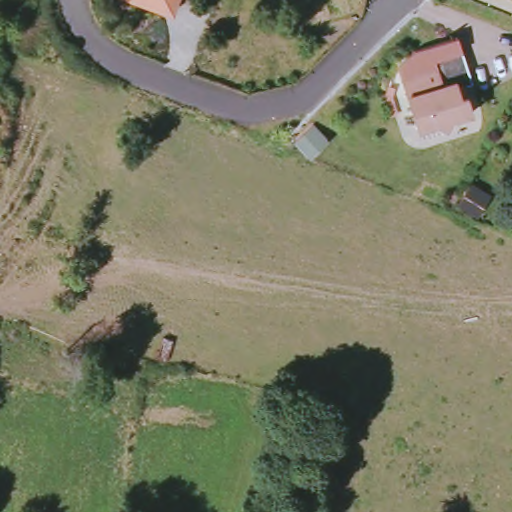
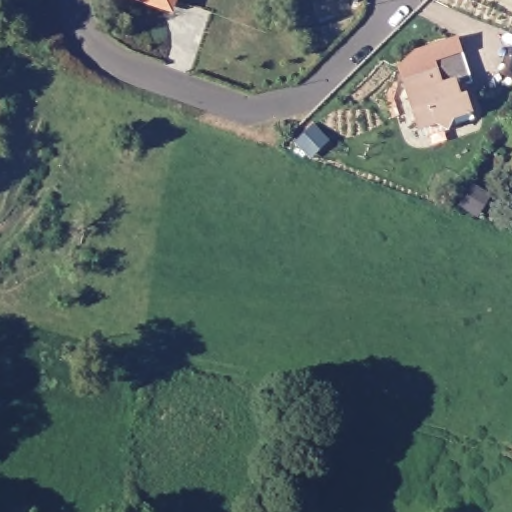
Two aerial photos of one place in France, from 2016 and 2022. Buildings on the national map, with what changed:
unchanged [(172,5),(158,0),(174,0),(172,5)]
unchanged [(457,84),(460,93),(466,92),(471,108),(452,114),(446,126),(435,120),(417,126),(400,76),(395,58),(457,39),(460,47),(471,79),(457,84)]

